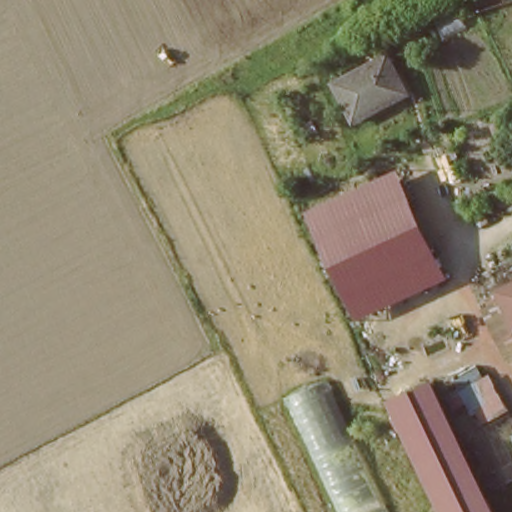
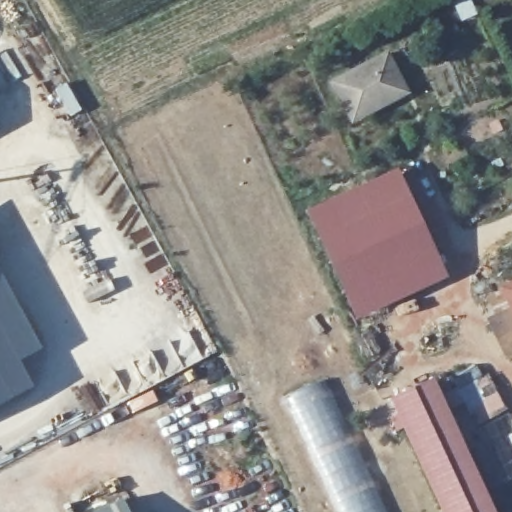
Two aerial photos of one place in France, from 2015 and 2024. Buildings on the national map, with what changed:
unchanged [(420,30),(430,46),(405,59),(397,41),(420,30)]
unchanged [(335,82),(390,56),(409,97),(354,122),(335,82)]
unchanged [(415,220),(444,276),(356,325),(325,266),(352,251),(326,200),(392,172),(415,220)]
unchanged [(482,300),(473,282),(512,263),(512,286),(505,290),(485,299),(482,300)]
new [(43,350),(20,361),(34,387),(0,406),(0,271),(43,350)]
unchanged [(512,286),(512,306),(505,290),(512,286)]
unchanged [(512,359),(510,360),(482,300),(485,299),(505,290),(512,306),(512,359)]
unchanged [(284,398),(327,378),(389,512),(338,512),(284,398)]
unchanged [(419,451),(393,396),(432,380),(440,397),(469,459),(493,512),(446,512),(419,451)]
unchanged [(505,411),(480,429),(475,420),(460,425),(445,398),(488,380),(505,411)]
new [(121,500),(127,512),(96,512),(121,500)]

